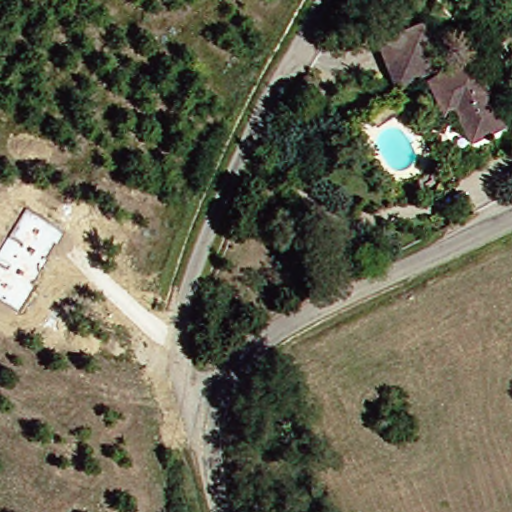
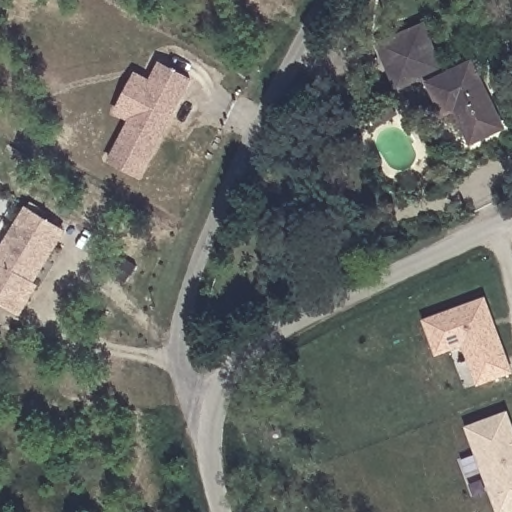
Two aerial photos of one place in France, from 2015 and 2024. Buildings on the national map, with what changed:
unchanged [(410,23),(433,70),(459,58),(495,124),(465,139),(449,105),(434,110),(415,72),(387,83),(366,43),(410,23)]
new [(115,113),(135,75),(150,82),(159,63),(190,79),(140,177),(110,161),(131,120),(115,113)]
new [(66,231),(32,285),(36,287),(20,312),(0,300),(0,251),(27,208),(66,231)]
new [(437,350),(425,317),(485,295),(512,367),(512,369),(487,377),(465,386),(450,346),(437,350)]
new [(512,509),(505,512),(500,512),(466,426),(506,410),(512,425),(512,509)]

